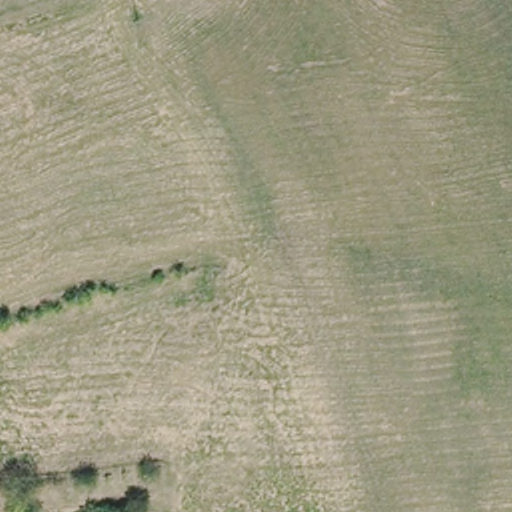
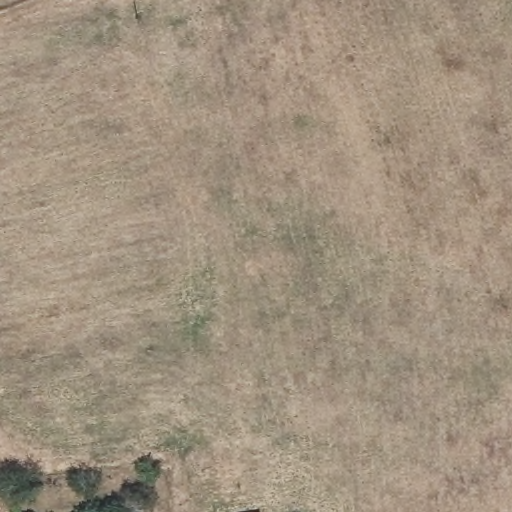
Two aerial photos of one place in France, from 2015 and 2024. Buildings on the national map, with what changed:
[]

